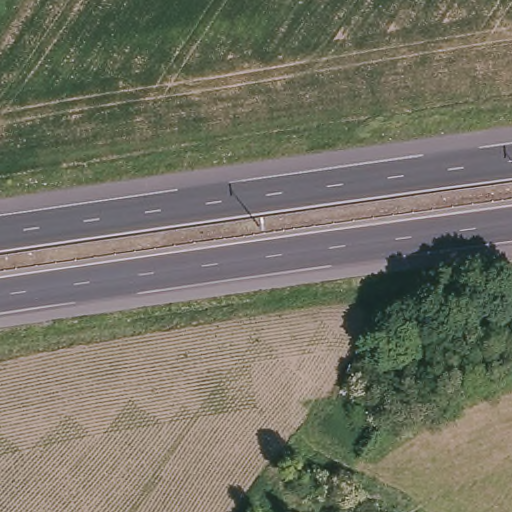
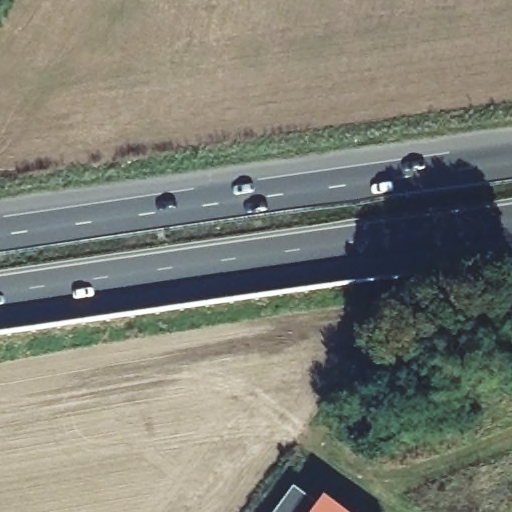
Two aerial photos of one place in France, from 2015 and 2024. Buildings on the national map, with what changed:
new [(319,507),(315,512),(276,512),(293,488),(319,507)]
new [(318,506),(324,499),(341,512),(315,512),(319,507),(318,506)]

